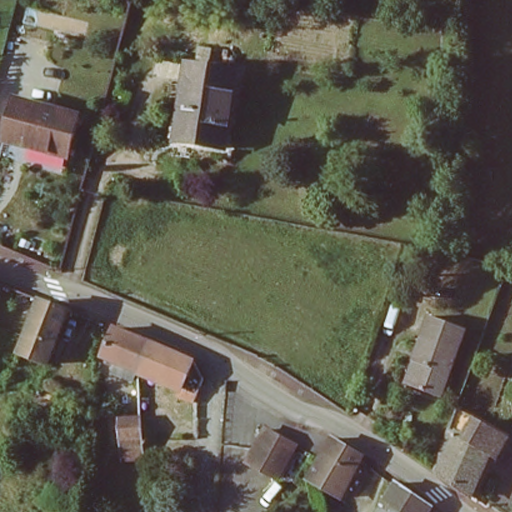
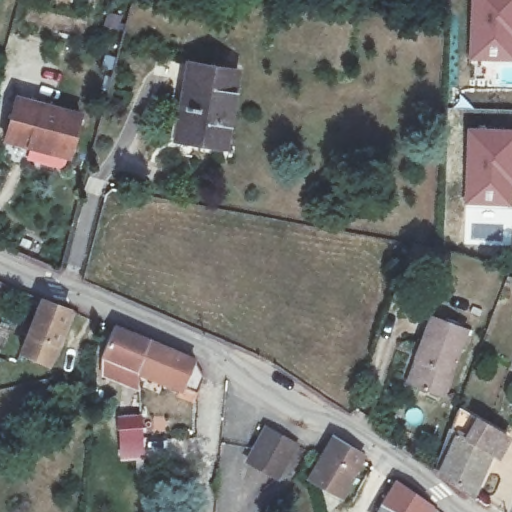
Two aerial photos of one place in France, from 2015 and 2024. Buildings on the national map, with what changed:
new [(472,60),(474,0),(512,0),(512,61),(472,60)]
unchanged [(175,103),(182,105),(192,59),(243,71),(225,148),(182,139),(167,135),(175,103)]
unchanged [(64,157),(0,141),(0,127),(8,97),(74,114),(64,157)]
new [(512,128),(512,209),(467,208),(467,127),(512,128)]
unchanged [(43,374),(10,361),(18,337),(28,340),(33,323),(43,300),(67,310),(43,374)]
unchanged [(413,362),(431,315),(466,328),(441,397),(412,386),(405,384),(413,362)]
unchanged [(97,360),(108,332),(145,347),(134,375),(97,360)]
unchanged [(145,347),(189,366),(197,382),(190,400),(134,375),(145,347)]
unchanged [(496,457),(490,454),(470,496),(435,472),(458,410),(459,407),(508,435),(504,442),(496,457)]
unchanged [(120,437),(117,416),(140,415),(142,436),(120,437)]
unchanged [(300,444),(278,480),(245,459),(265,421),(300,444)]
unchanged [(340,499),(310,479),(332,436),(363,456),(362,458),(340,499)]
demolished [(378,505),(390,481),(425,506),(421,512),(375,512),(378,505)]
new [(378,505),(390,481),(425,506),(421,512),(375,512),(378,505)]

